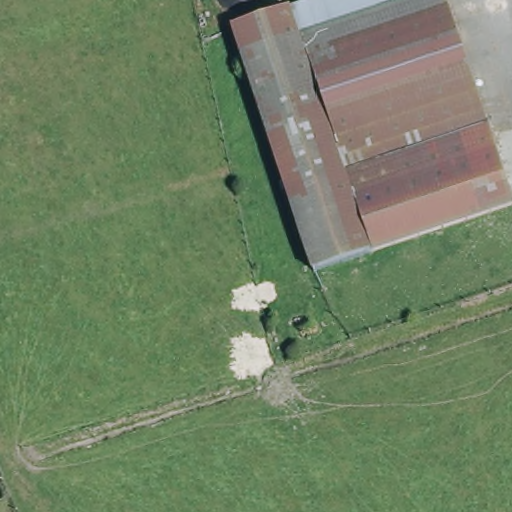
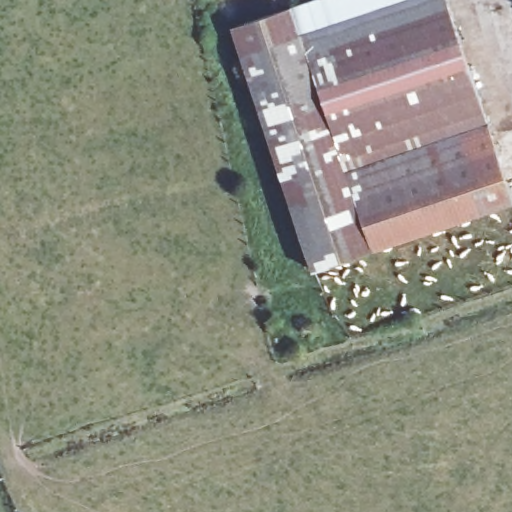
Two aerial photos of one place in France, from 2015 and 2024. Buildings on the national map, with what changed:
unchanged [(315,0),(446,0),(512,199),(512,208),(312,275),(229,29),(315,0)]

